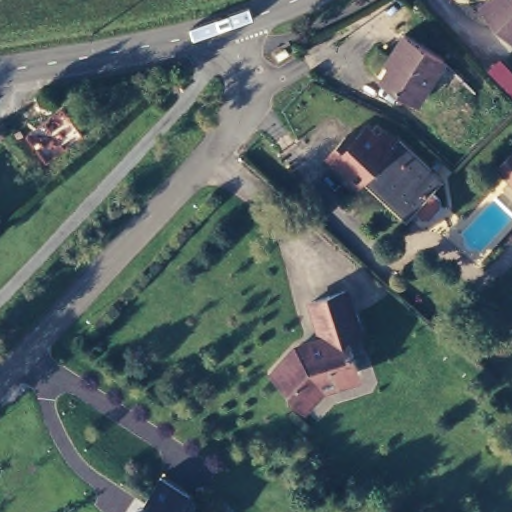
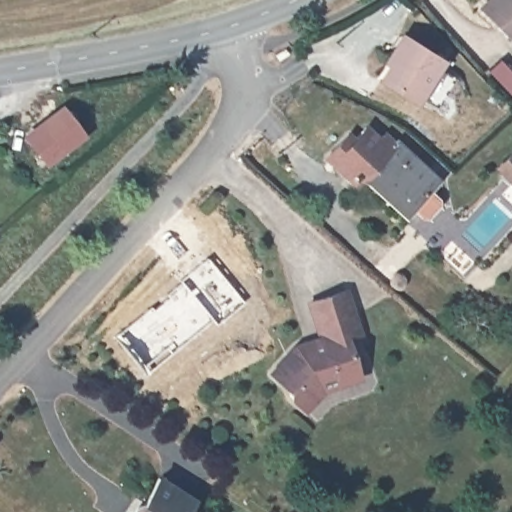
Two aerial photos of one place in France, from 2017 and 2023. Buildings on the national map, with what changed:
unchanged [(479,2),(480,0),(512,0),(512,35),(479,2)]
unchanged [(408,31),(441,56),(416,93),(381,69),(408,31)]
new [(61,106),(83,131),(47,161),(26,136),(61,106)]
unchanged [(342,177),(322,159),(344,134),(349,139),(360,127),(375,141),(383,131),(433,177),(423,189),(433,198),(433,204),(422,216),(416,216),(406,207),(364,170),(351,185),(342,177)]
unchanged [(497,165),(512,151),(512,180),(497,165)]
unchanged [(350,291),(364,333),(351,338),(357,355),(355,356),(360,373),(341,379),(342,384),(328,389),(310,409),(295,396),(294,389),(277,373),(300,347),(326,338),(314,302),(350,291)]
unchanged [(152,500),(150,499),(166,475),(196,493),(192,500),(193,501),(195,503),(196,504),(197,506),(198,507),(199,508),(200,510),(201,512),(144,512),(152,500)]

